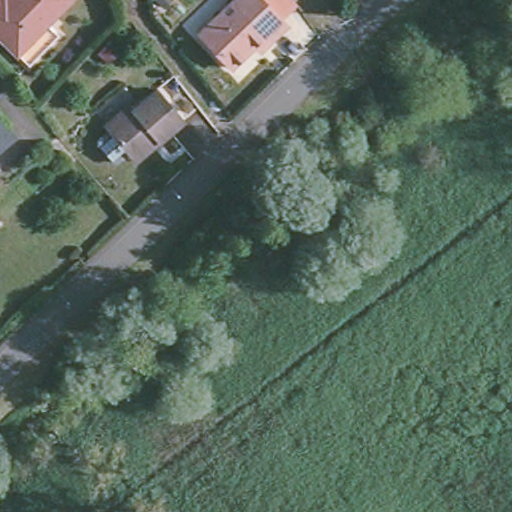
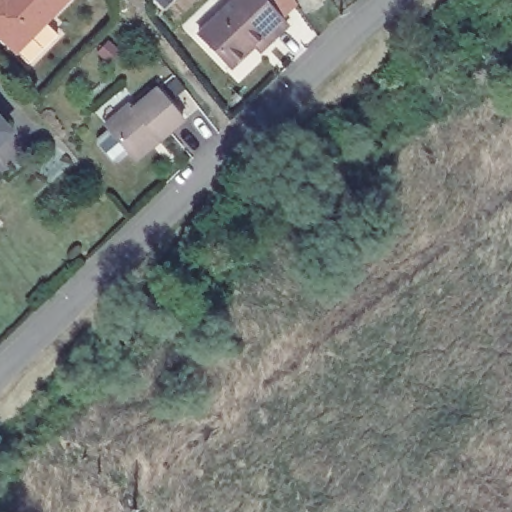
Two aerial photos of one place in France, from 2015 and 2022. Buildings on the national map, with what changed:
unchanged [(17,50),(0,33),(0,0),(64,0),(46,19),(60,32),(31,62),(17,50)]
unchanged [(244,55),(219,77),(187,42),(232,0),(245,0),(269,26),(277,34),(261,50),(250,60),(244,55)]
unchanged [(285,11),(269,26),(245,0),(277,0),(285,11)]
unchanged [(137,156),(134,152),(122,162),(117,161),(103,143),(104,137),(115,129),(111,124),(135,105),(137,107),(162,88),(189,120),(163,141),(140,160),(137,156)]
unchanged [(0,143),(0,123),(10,134),(0,143)]

